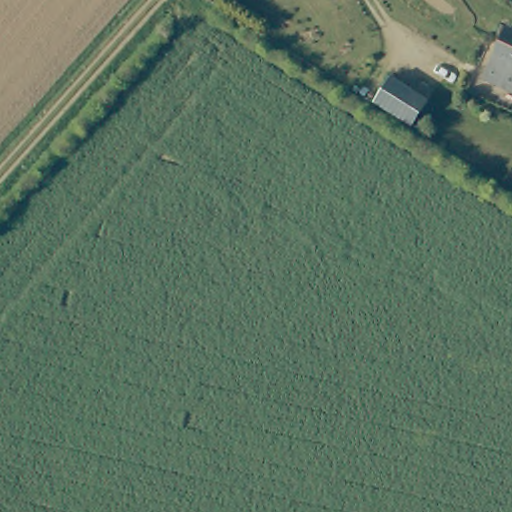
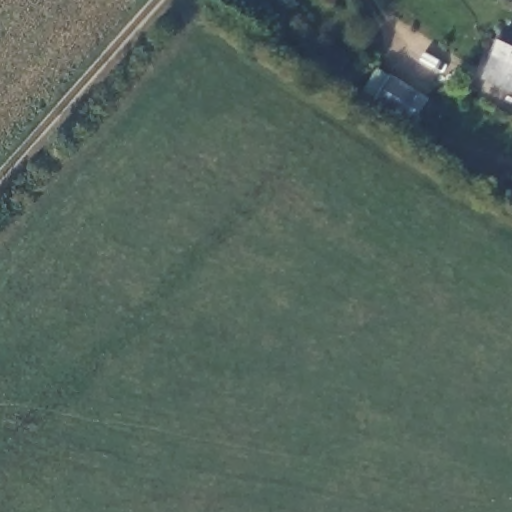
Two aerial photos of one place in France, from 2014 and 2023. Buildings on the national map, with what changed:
unchanged [(512,93),(484,81),(506,30),(512,32),(512,93)]
unchanged [(424,98),(405,128),(367,104),(386,75),(424,98)]

